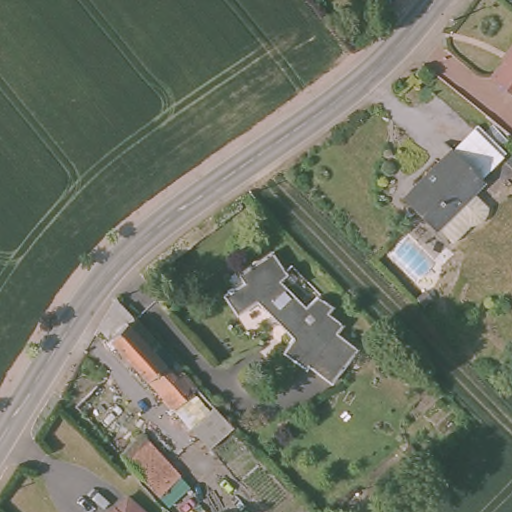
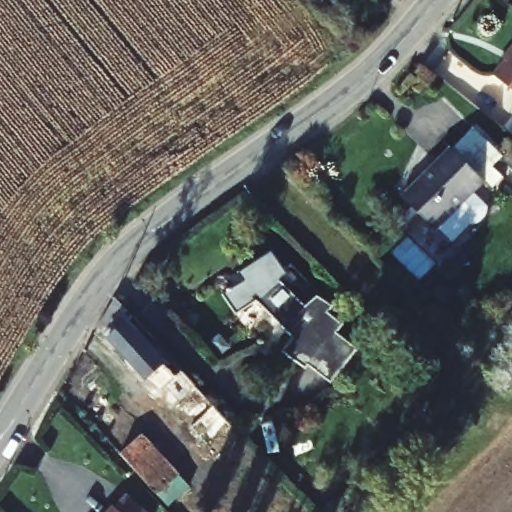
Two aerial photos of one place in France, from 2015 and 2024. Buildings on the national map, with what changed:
unchanged [(512,52),(512,56),(510,55),(512,52)]
unchanged [(512,60),(512,93),(495,81),(512,60)]
unchanged [(482,180),(452,209),(454,212),(435,229),(403,197),(407,194),(410,196),(420,187),(417,184),(452,149),(482,180)]
unchanged [(287,290),(282,293),(302,312),(310,306),(323,316),(320,319),(349,352),(325,378),(306,365),(302,371),(284,358),(292,347),(252,307),(237,317),(225,301),(242,292),(240,281),(270,266),(287,290)]
unchanged [(208,448),(189,426),(115,344),(130,318),(147,336),(140,342),(187,396),(195,390),(210,406),(231,427),(208,448)]
unchanged [(134,435),(175,477),(156,494),(117,452),(134,435)]
unchanged [(109,512),(116,505),(120,507),(130,496),(148,512),(109,512)]

